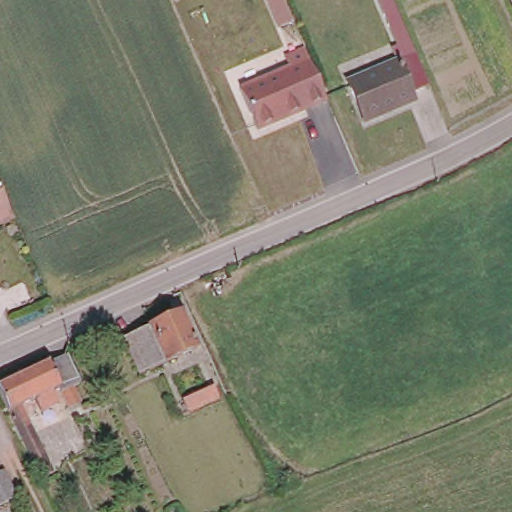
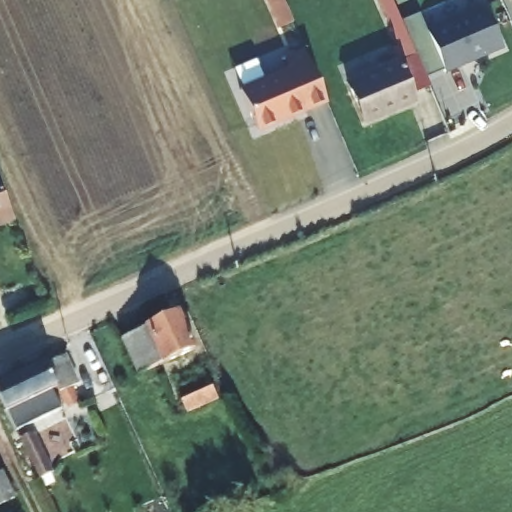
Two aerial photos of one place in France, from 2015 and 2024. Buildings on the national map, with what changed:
unchanged [(405,93),(409,101),(382,113),(366,73),(396,60),(369,0),(387,0),(424,85),(405,93)]
new [(397,23),(419,15),(426,30),(484,5),(504,51),(445,75),(442,69),(421,79),(397,23)]
unchanged [(325,109),(257,139),(239,99),(289,77),(284,66),(302,57),(325,109)]
unchanged [(382,113),(359,123),(341,83),(366,73),(382,113)]
unchanged [(6,219),(0,221),(0,197),(8,215),(6,219)]
unchanged [(134,332),(164,319),(180,354),(150,368),(134,332)]
unchanged [(73,385),(80,401),(69,406),(60,384),(52,387),(59,400),(42,407),(36,394),(22,400),(52,469),(37,475),(0,390),(0,380),(66,352),(80,383),(73,385)]
unchanged [(189,415),(179,394),(212,379),(219,401),(189,415)]
unchanged [(19,507),(8,512),(0,512),(0,485),(7,482),(11,491),(19,507)]

